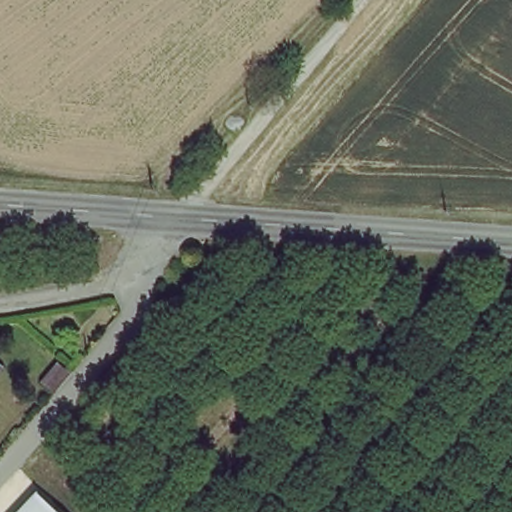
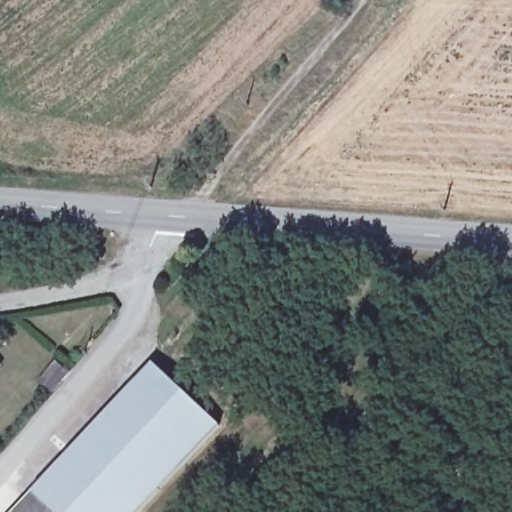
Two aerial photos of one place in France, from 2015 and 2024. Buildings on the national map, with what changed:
unchanged [(0,365),(0,363),(1,364),(0,365)]
new [(219,426),(139,512),(55,512),(33,492),(154,365),(219,426)]
unchanged [(55,512),(14,512),(33,492),(55,512)]

